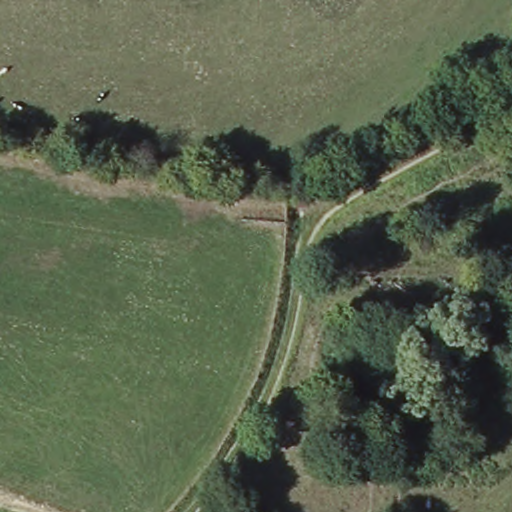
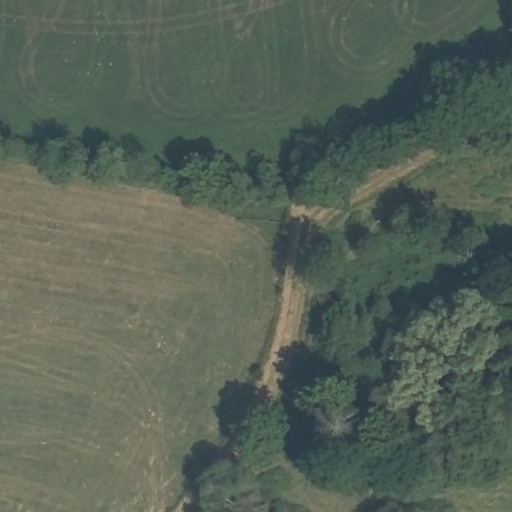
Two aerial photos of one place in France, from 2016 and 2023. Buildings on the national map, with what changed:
unchanged [(333,259),(317,258),(319,241),(335,242),(333,259)]

